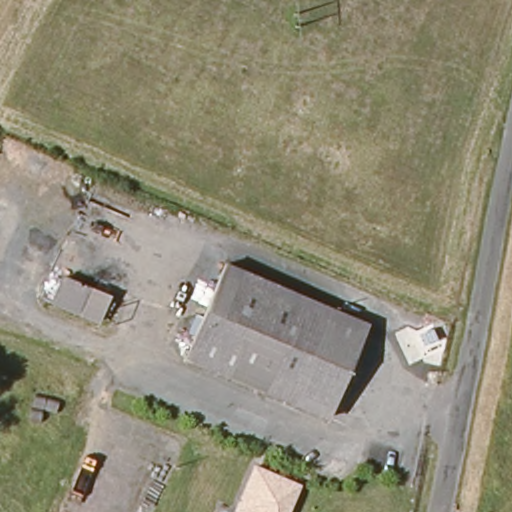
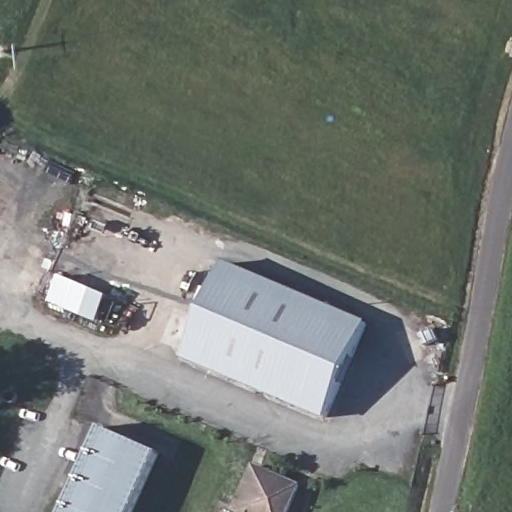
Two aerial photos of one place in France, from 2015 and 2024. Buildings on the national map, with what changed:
demolished [(437,134),(453,143),(447,154),(430,146),(437,134)]
unchanged [(368,326),(328,420),(188,358),(229,266),(368,326)]
unchanged [(111,302),(99,324),(55,305),(65,281),(111,302)]
new [(102,428),(158,453),(131,512),(64,512),(102,428)]
unchanged [(255,475),(297,492),(288,512),(239,512),(255,475)]

